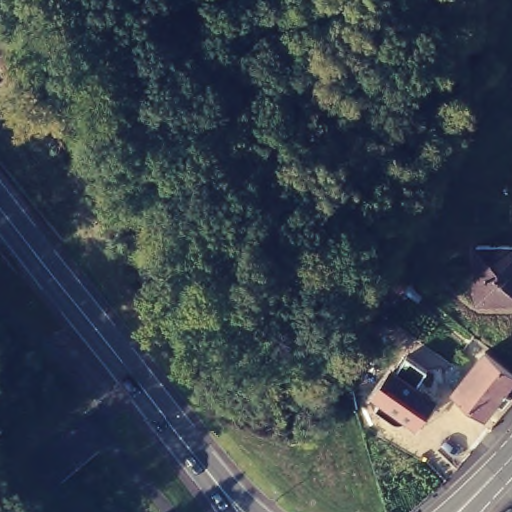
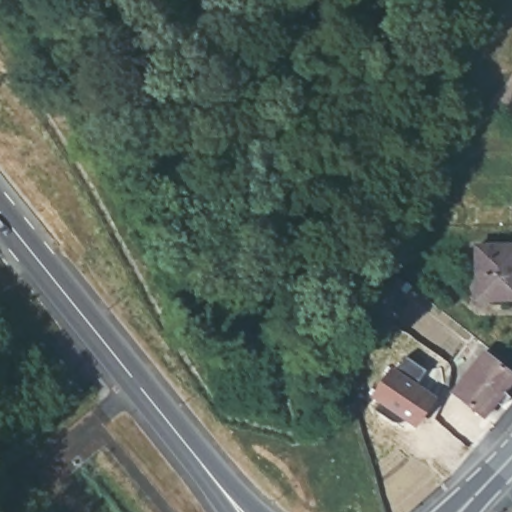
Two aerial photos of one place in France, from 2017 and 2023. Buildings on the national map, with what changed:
unchanged [(477,294),(476,242),(512,242),(512,294),(477,294)]
unchanged [(502,388),(508,393),(501,402),(496,397),(483,412),(453,388),(484,349),(512,371),(512,376),(502,388)]
unchanged [(430,399),(413,424),(379,400),(397,375),(430,399)]

